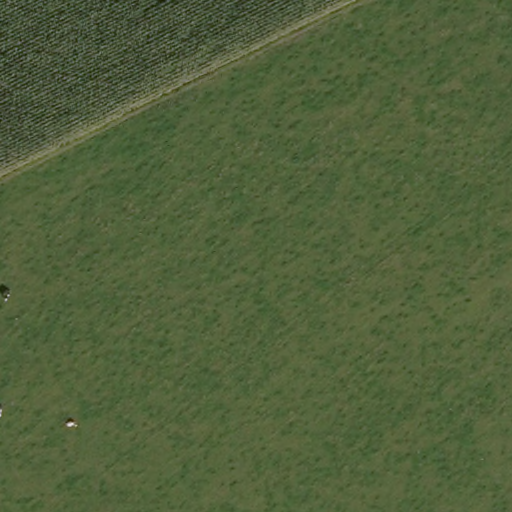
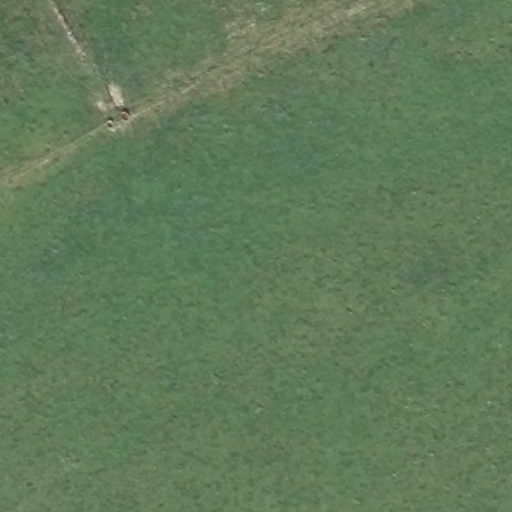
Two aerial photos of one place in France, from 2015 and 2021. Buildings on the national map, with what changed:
[]

